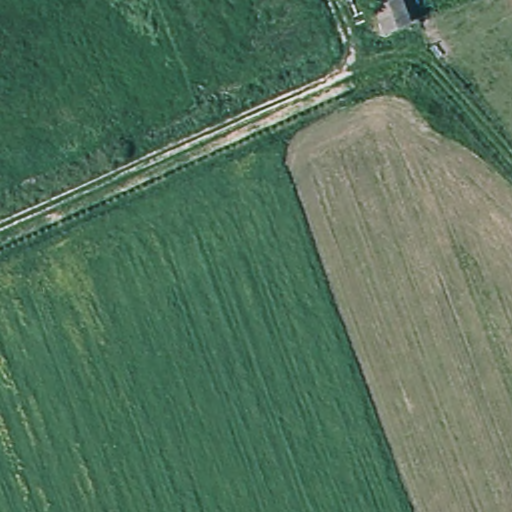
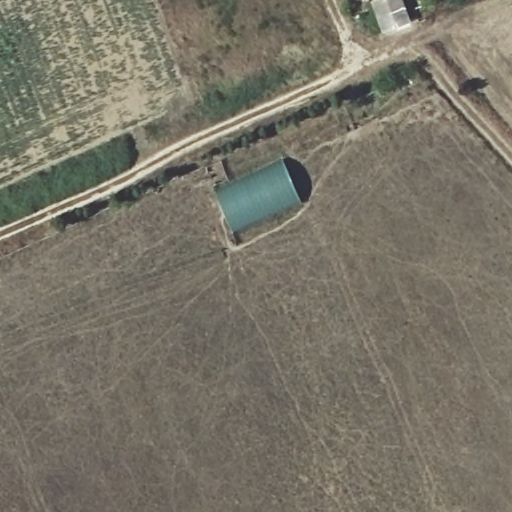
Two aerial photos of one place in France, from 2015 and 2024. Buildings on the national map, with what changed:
unchanged [(415,21),(403,25),(388,31),(376,0),(407,0),(415,21)]
new [(281,160),(300,204),(235,235),(215,191),(281,160)]

